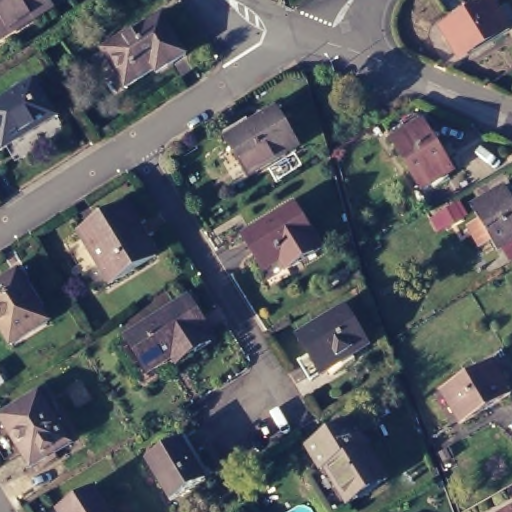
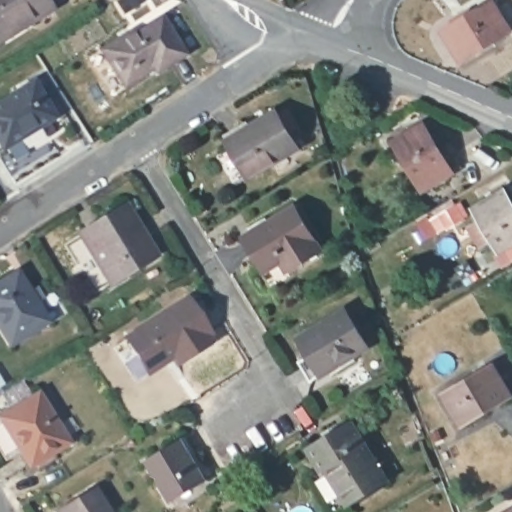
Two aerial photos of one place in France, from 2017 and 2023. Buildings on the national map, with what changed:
unchanged [(0,0),(4,0),(18,21),(0,32),(0,0)]
unchanged [(52,5),(32,17),(29,14),(18,21),(4,0),(49,0),(52,5)]
unchanged [(442,30),(491,1),(509,31),(461,60),(442,30)]
unchanged [(162,12),(186,51),(157,70),(154,65),(125,82),(101,44),(132,25),(134,30),(162,12)]
unchanged [(0,138),(0,98),(34,77),(56,112),(4,145),(0,138)]
unchanged [(255,118),(257,120),(275,110),(298,147),(248,177),(222,135),(254,116),(255,118)]
unchanged [(394,142),(423,125),(451,171),(422,189),(394,142)]
unchanged [(475,208),(504,191),(512,205),(512,242),(498,250),(475,208)]
unchanged [(117,279),(86,229),(131,201),(162,252),(117,279)]
unchanged [(281,256),(264,266),(243,233),(294,201),(322,245),(287,265),(281,256)]
unchanged [(15,341),(5,325),(1,327),(0,327),(0,283),(22,270),(52,318),(15,341)]
unchanged [(168,352),(144,368),(122,334),(182,295),(205,329),(202,331),(207,338),(189,350),(173,360),(168,352)]
unchanged [(310,355),(320,347),(310,330),(357,301),(377,335),(362,345),(366,350),(342,365),(339,360),(330,365),(320,371),(310,355)]
unchanged [(444,393),(492,365),(509,395),(462,423),(444,393)]
unchanged [(0,387),(0,378),(4,385),(0,387)]
unchanged [(0,412),(38,388),(70,437),(30,462),(0,415),(0,412)]
unchanged [(314,444),(356,417),(392,475),(352,499),(331,464),(327,466),(314,444)]
unchanged [(171,500),(147,460),(181,440),(206,480),(171,500)]
unchanged [(95,487),(110,512),(59,512),(57,510),(95,487)]
unchanged [(502,512),(512,506),(512,512),(502,512)]

